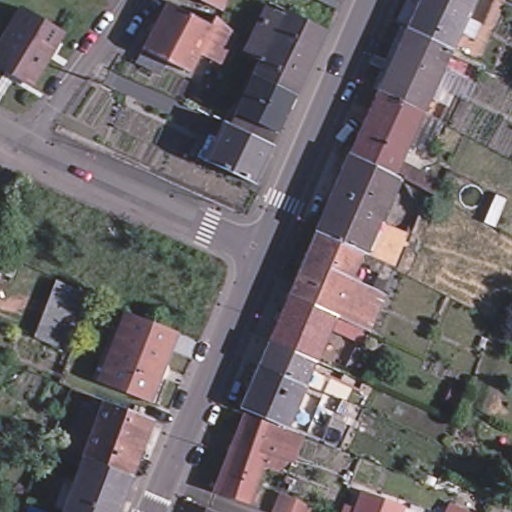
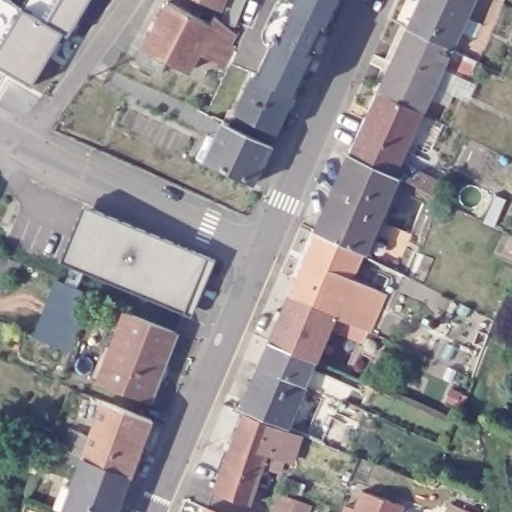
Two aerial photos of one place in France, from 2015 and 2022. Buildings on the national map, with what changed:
new [(0,46),(0,0),(9,0),(22,9),(0,46)]
new [(25,6),(28,0),(91,0),(69,36),(65,32),(65,30),(25,6)]
unchanged [(180,0),(210,16),(214,7),(218,11),(236,27),(230,38),(234,40),(223,62),(210,56),(216,40),(205,28),(186,65),(167,55),(159,69),(135,56),(143,42),(165,0),(180,0)]
unchanged [(217,0),(221,0),(220,2),(217,0)]
unchanged [(324,0),(339,0),(336,6),(324,0)]
unchanged [(419,0),(473,0),(460,29),(473,36),(477,27),(487,32),(483,40),(481,39),(471,58),(471,60),(462,77),(442,67),(422,111),(378,89),(405,29),(406,28),(419,0)]
unchanged [(271,5),(286,12),(290,8),(330,30),(313,65),(256,36),(271,5)]
unchanged [(0,62),(0,46),(25,6),(65,30),(34,82),(0,62)]
unchanged [(267,163),(265,162),(255,182),(208,158),(227,120),(218,116),(225,102),(241,109),(264,59),(248,51),(256,36),(313,65),(280,131),(275,143),(273,145),(275,146),(267,163)]
unchanged [(331,192),(349,153),(356,137),(378,89),(422,111),(422,112),(399,162),(418,172),(425,176),(419,189),(413,186),(411,185),(398,216),(406,220),(403,226),(398,237),(372,226),(361,254),(314,232),(327,202),(331,192)]
new [(215,259),(192,316),(84,270),(78,287),(65,282),(71,265),(61,260),(84,206),(215,259)]
unchanged [(287,293),(314,232),(361,254),(351,278),(336,315),(287,293)]
unchanged [(19,261),(12,276),(0,270),(0,252),(19,261)]
unchanged [(287,294),(287,293),(336,315),(351,278),(365,284),(373,267),(392,275),(368,331),(350,322),(345,336),(331,327),(316,361),(267,341),(287,294)]
unchanged [(40,322),(42,317),(45,307),(48,301),(56,279),(92,292),(83,314),(81,322),(77,330),(75,337),(70,348),(35,335),(40,322)]
unchanged [(170,372),(160,398),(147,393),(102,376),(114,346),(120,331),(130,306),(181,325),(170,352),(170,356),(165,367),(163,370),(170,372)]
unchanged [(213,492),(243,414),(276,425),(276,423),(245,410),(239,407),(257,363),(267,341),(316,361),(313,368),(327,375),(333,378),(326,393),(305,385),(287,427),(300,433),(292,452),(289,450),(285,459),(267,452),(260,473),(255,490),(250,504),(213,492)]
unchanged [(81,423),(96,429),(108,395),(157,413),(136,470),(87,451),(88,450),(73,443),(81,423)]
unchanged [(313,439),(317,430),(328,435),(325,444),(313,439)]
unchanged [(126,497),(77,477),(87,451),(136,470),(126,497)]
unchanged [(121,512),(75,512),(66,508),(66,507),(77,477),(126,497),(121,512)]
unchanged [(280,492),(311,502),(308,512),(273,512),(280,492)]
unchanged [(399,507),(397,512),(340,512),(342,507),(351,510),(358,492),(399,507)]
unchanged [(480,512),(448,512),(453,500),(480,512)]
unchanged [(66,508),(75,512),(65,512),(66,508)]
unchanged [(211,508),(221,512),(210,512),(211,508)]

